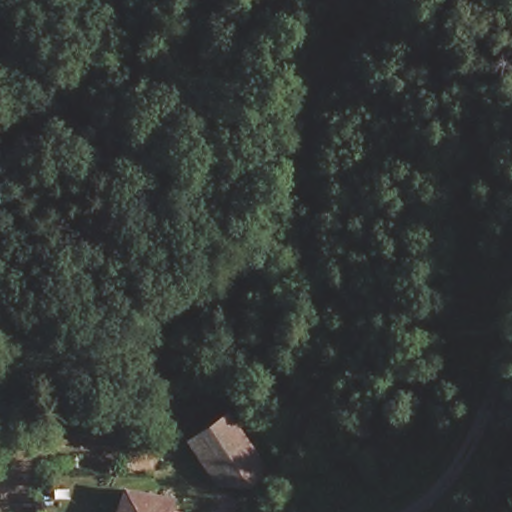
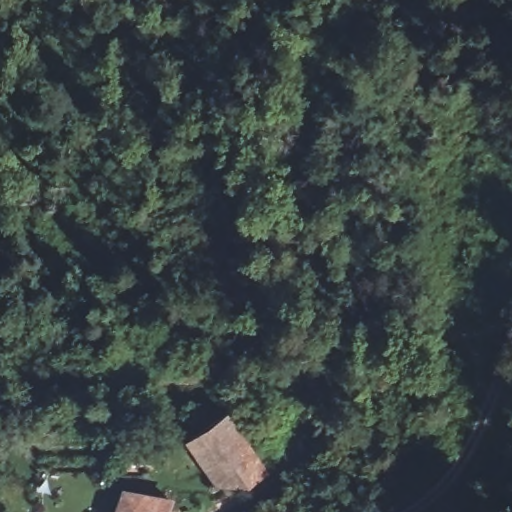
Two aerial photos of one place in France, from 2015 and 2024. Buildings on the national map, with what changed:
unchanged [(230,417),(274,471),(256,486),(227,482),(197,443),(230,417)]
unchanged [(177,512),(118,512),(125,487),(180,502),(177,512)]

